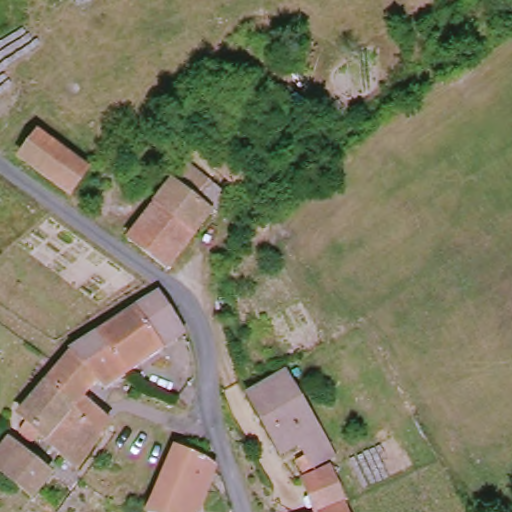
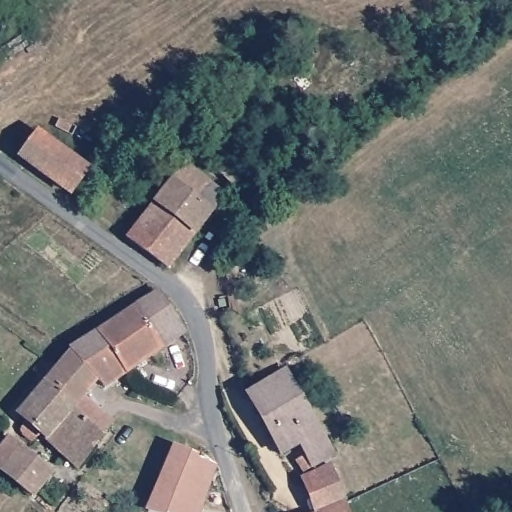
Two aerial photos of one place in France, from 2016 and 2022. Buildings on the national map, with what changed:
unchanged [(21,161),(41,131),(93,167),(72,196),(21,161)]
unchanged [(213,161),(217,157),(222,150),(252,179),(247,183),(241,189),(232,180),(213,161)]
unchanged [(185,161),(202,175),(222,192),(164,266),(125,237),(185,161)]
unchanged [(140,298),(157,286),(188,330),(169,343),(140,298)]
unchanged [(104,325),(140,298),(169,343),(134,369),(104,325)]
unchanged [(71,349),(104,325),(134,369),(106,388),(101,384),(88,396),(54,370),(71,349)]
unchanged [(247,390),(289,365),(340,453),(306,468),(300,457),(288,462),(247,390)]
unchanged [(54,370),(88,396),(119,422),(82,467),(39,433),(34,438),(25,431),(25,427),(29,423),(19,415),(23,408),(54,370)]
unchanged [(57,475),(35,500),(0,471),(0,442),(8,433),(57,475)]
unchanged [(175,439),(218,457),(207,491),(163,473),(175,439)]
unchanged [(302,473),(307,472),(341,459),(345,468),(339,470),(350,498),(332,504),(317,509),(315,510),(302,473)]
unchanged [(163,473),(207,491),(199,512),(153,512),(151,511),(163,473)]
unchanged [(332,504),(350,498),(355,512),(335,512),(332,504)]
unchanged [(310,512),(315,510),(317,509),(332,504),(335,512),(310,512)]

